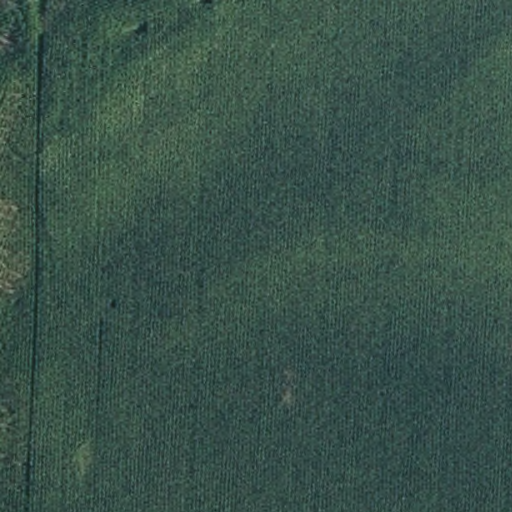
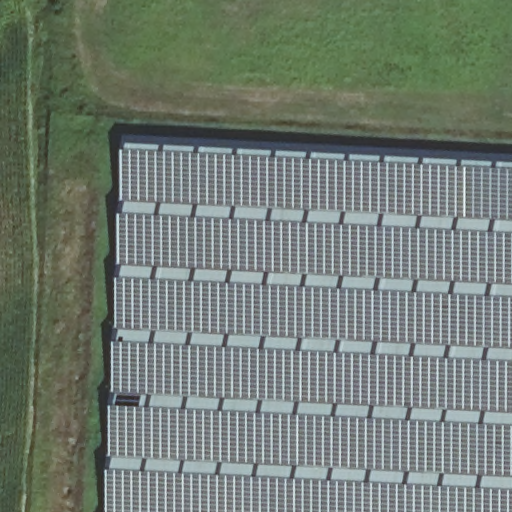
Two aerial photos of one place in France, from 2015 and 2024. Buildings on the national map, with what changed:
new [(512,154),(512,512),(110,512),(127,135),(512,154)]

